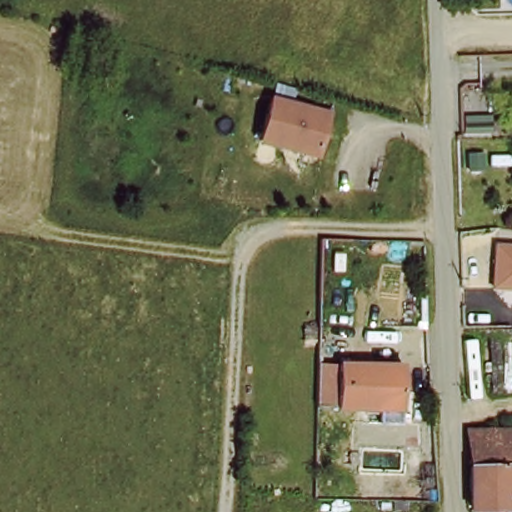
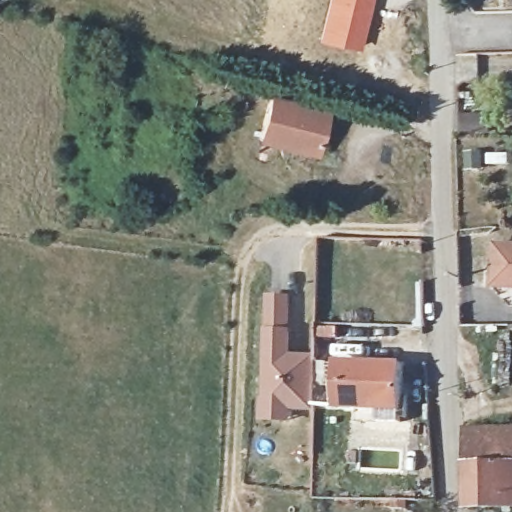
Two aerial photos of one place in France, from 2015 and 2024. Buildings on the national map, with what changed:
new [(327,0),(372,0),(359,51),(316,43),(327,0)]
unchanged [(264,95),(320,110),(309,151),(253,137),(264,95)]
unchanged [(493,245),(512,243),(512,284),(495,285),(493,245)]
new [(265,400),(267,329),(268,329),(269,295),(287,295),(286,330),(287,330),(287,355),(299,355),(312,355),(310,405),(287,405),(287,418),(263,417),(263,400),(265,400)]
unchanged [(338,361),(403,362),(402,398),(377,398),(377,406),(336,405),(338,361)]
unchanged [(470,425),(512,424),(512,457),(472,460),(470,425)]
unchanged [(472,460),(512,457),(512,502),(475,503),(472,460)]

